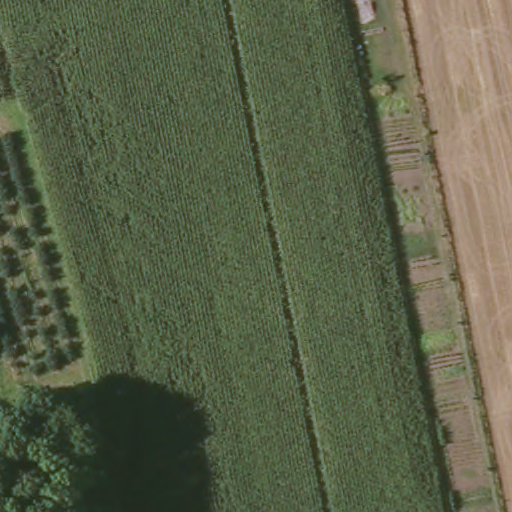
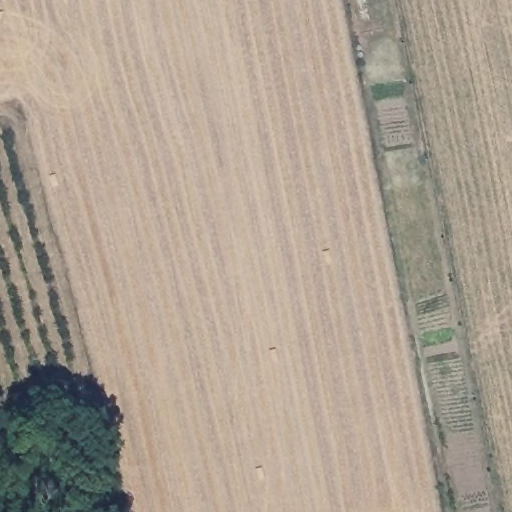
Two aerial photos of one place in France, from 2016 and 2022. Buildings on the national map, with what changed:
unchanged [(358,24),(353,0),(370,0),(375,21),(358,24)]

